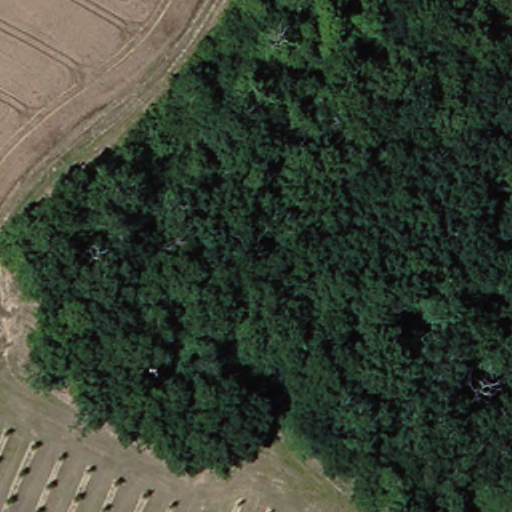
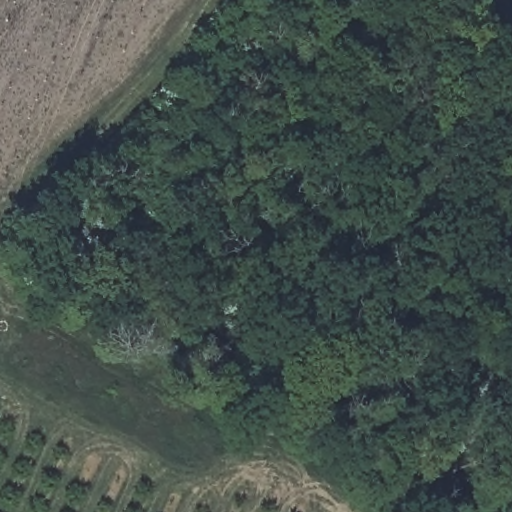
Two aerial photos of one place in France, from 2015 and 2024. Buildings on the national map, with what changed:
[]

